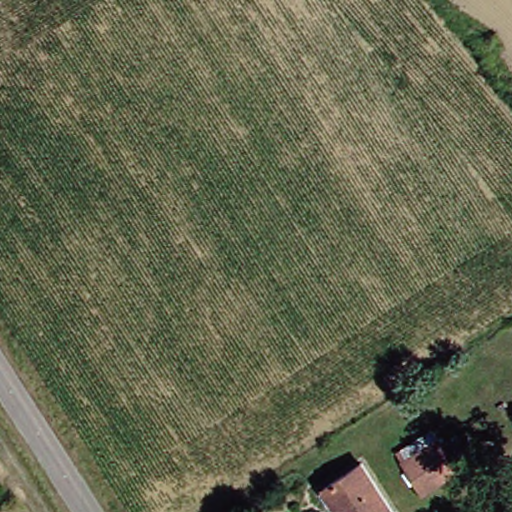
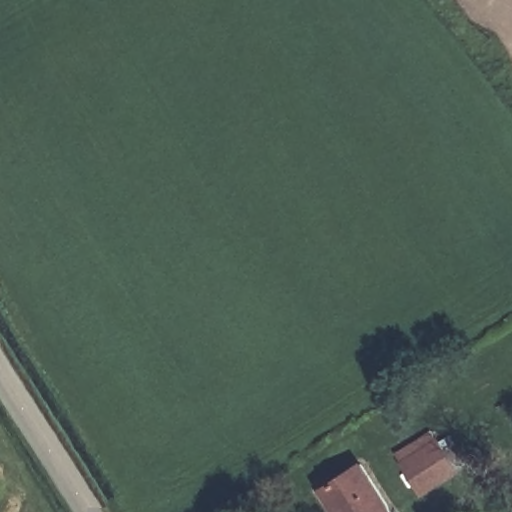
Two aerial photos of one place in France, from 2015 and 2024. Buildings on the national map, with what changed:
unchanged [(402,451),(435,432),(449,452),(461,445),(474,466),(462,472),(429,492),(402,451)]
unchanged [(399,511),(398,512),(331,512),(318,493),(366,465),(399,511)]

